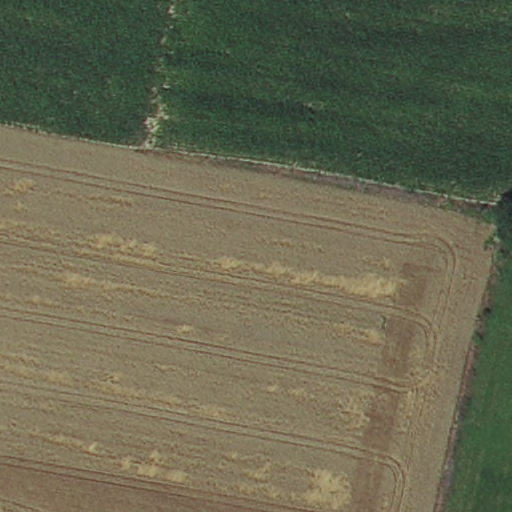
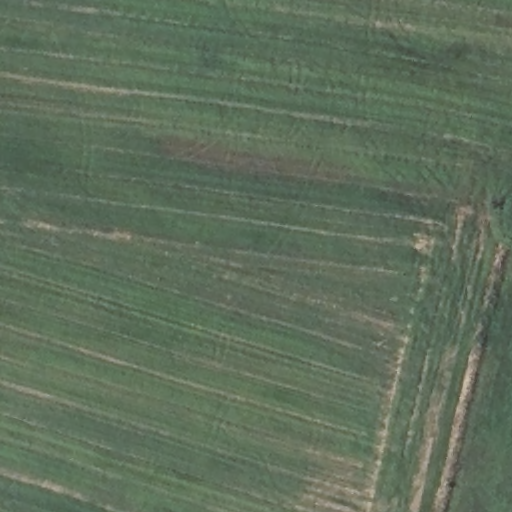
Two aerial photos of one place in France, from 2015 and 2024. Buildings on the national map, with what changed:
[]

